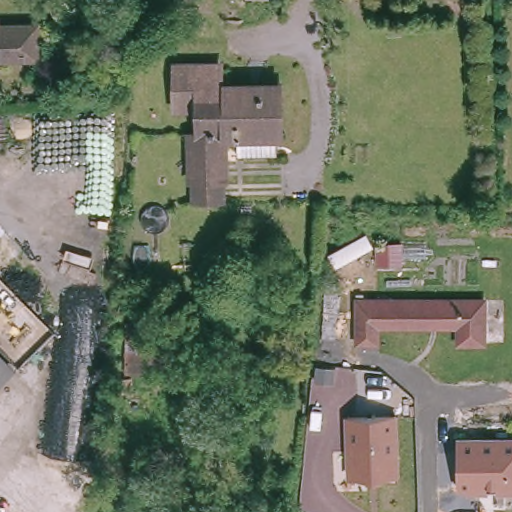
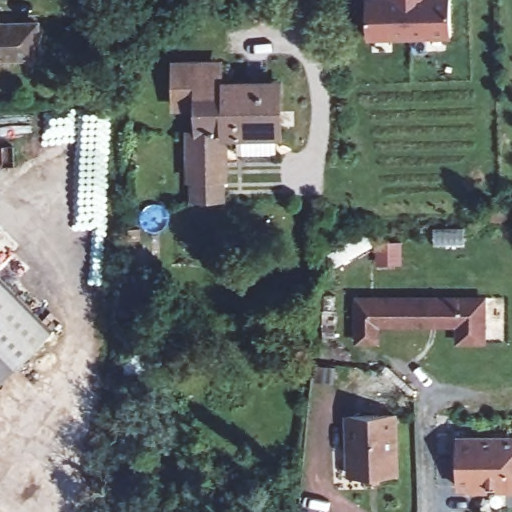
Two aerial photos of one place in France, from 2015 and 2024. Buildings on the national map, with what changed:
new [(367,39),(367,0),(450,0),(452,36),(367,39)]
unchanged [(43,52),(0,54),(0,14),(4,14),(4,21),(42,20),(42,25),(43,52)]
unchanged [(245,146),(246,125),(229,126),(229,172),(225,172),(225,191),(195,190),(196,170),(192,170),(193,123),(205,123),(205,80),(182,79),(183,56),(225,58),(225,78),(283,79),(285,148),(245,146)]
new [(52,329),(15,364),(0,349),(0,276),(52,329)]
unchanged [(459,339),(458,325),(377,325),(378,339),(357,339),(357,298),(484,298),(485,338),(459,339)]
unchanged [(0,380),(0,349),(15,364),(0,380)]
unchanged [(400,474),(348,476),(345,417),(396,413),(400,474)]
unchanged [(512,491),(457,489),(457,437),(512,437),(512,491)]

